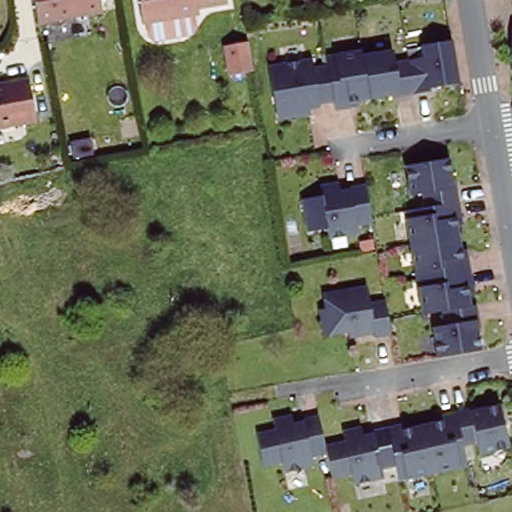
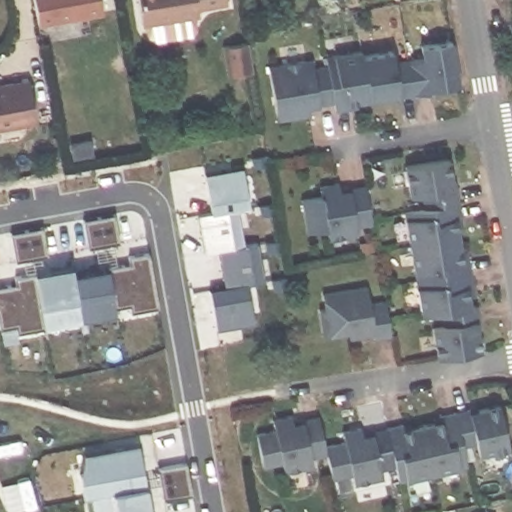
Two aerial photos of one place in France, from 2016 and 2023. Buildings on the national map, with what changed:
unchanged [(43,22),(39,0),(104,0),(106,10),(43,22)]
unchanged [(202,10),(146,20),(143,0),(225,0),(200,5),(202,10)]
unchanged [(512,27),(512,71),(510,71),(511,27),(512,27)]
new [(246,41),(251,71),(226,75),(222,45),(246,41)]
unchanged [(350,110),(334,112),(332,104),(307,107),(309,117),(290,120),(289,112),(275,114),(269,77),(312,67),(314,76),(327,72),(325,64),(361,56),(362,61),(392,54),(395,66),(423,59),(420,47),(450,41),(460,84),(428,89),(429,92),(398,96),(397,94),(355,100),(357,109),(350,110)]
unchanged [(38,123),(0,128),(0,85),(30,81),(38,123)]
unchanged [(477,351),(434,358),(429,327),(441,326),(439,312),(418,315),(402,211),(422,208),(420,194),(409,196),(404,166),(447,158),(452,187),(455,187),(460,217),(461,225),(455,226),(459,250),(465,249),(466,256),(471,286),(472,293),(466,294),(469,306),(475,305),(477,321),(478,327),(474,328),(477,351)]
new [(242,210),(247,245),(264,242),(270,281),(250,284),(257,322),(217,328),(211,291),(226,288),(221,250),(207,252),(200,214),(214,212),(207,172),(245,165),(254,207),(242,210)]
unchanged [(320,197),(319,187),(337,182),(339,192),(364,186),(372,222),(356,226),(358,235),(329,241),(327,230),(308,234),(301,201),(320,197)]
new [(135,310),(20,331),(19,323),(2,327),(0,311),(0,288),(20,285),(19,276),(39,272),(75,266),(77,272),(110,267),(132,262),(132,257),(152,253),(162,307),(135,310)]
unchanged [(350,335),(325,339),(319,312),(325,312),(322,297),(366,287),(370,305),(385,301),(392,336),(376,339),(375,335),(357,339),(351,340),(350,335)]
unchanged [(462,451),(465,470),(397,485),(394,470),(380,473),(382,482),(352,488),(350,478),(330,482),(325,458),(310,462),(312,470),(282,477),(280,466),(260,471),(253,438),(272,433),(269,423),(287,419),(290,428),(315,422),(322,451),(341,446),(339,436),(357,432),(359,438),(383,433),(399,429),(406,427),(407,430),(430,425),(430,422),(435,421),(466,415),(467,416),(497,409),(507,452),(477,459),(475,447),(462,451)]
new [(93,495),(85,497),(80,472),(87,452),(142,443),(149,485),(147,486),(152,512),(96,512),(93,495)]

